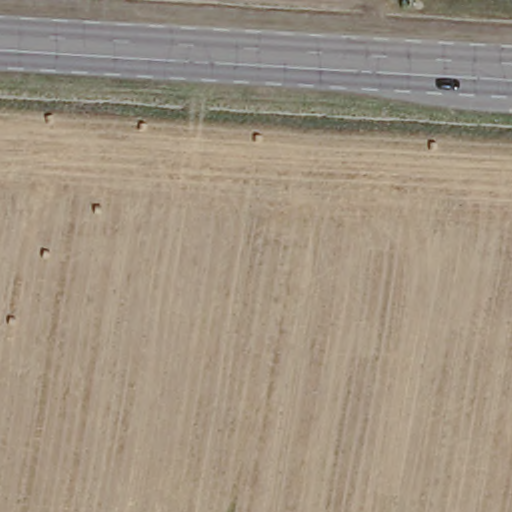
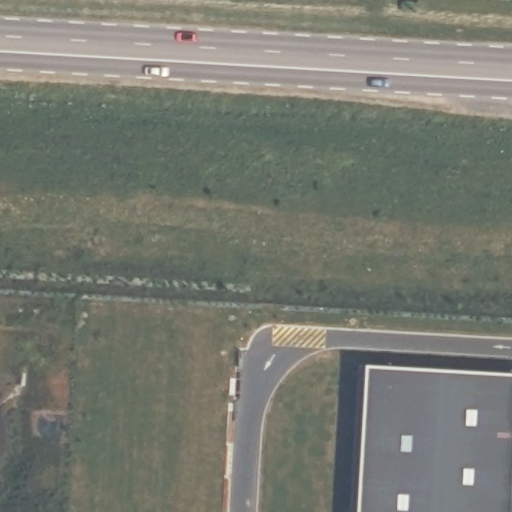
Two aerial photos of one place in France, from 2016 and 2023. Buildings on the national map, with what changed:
new [(355,512),(363,371),(512,379),(512,512),(355,512)]

